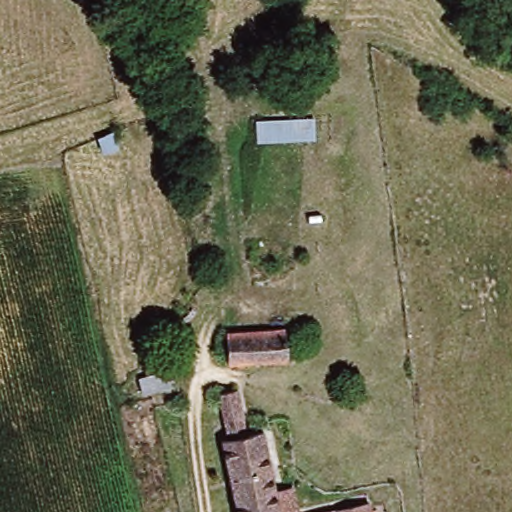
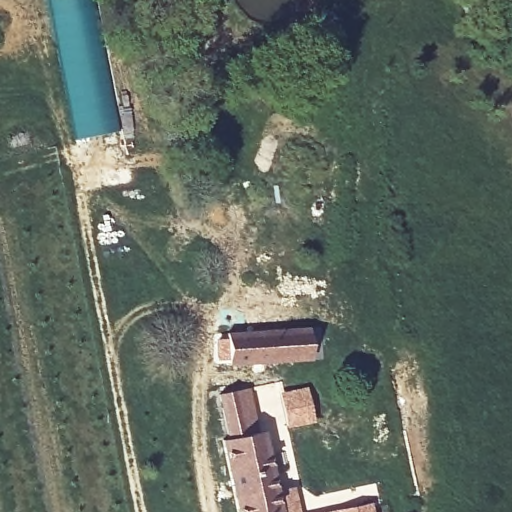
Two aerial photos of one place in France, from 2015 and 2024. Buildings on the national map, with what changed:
new [(120,130),(74,138),(47,0),(90,0),(106,52),(120,130)]
demolished [(315,120),(316,145),(255,149),(254,123),(315,120)]
unchanged [(286,334),(284,367),(217,366),(219,333),(286,334)]
unchanged [(136,378),(167,368),(173,387),(141,396),(136,378)]
unchanged [(294,512),(231,512),(214,448),(221,445),(211,405),(211,395),(232,392),(245,439),(255,437),(271,495),(289,492),(294,512)]
unchanged [(369,508),(370,512),(344,512),(369,508)]

